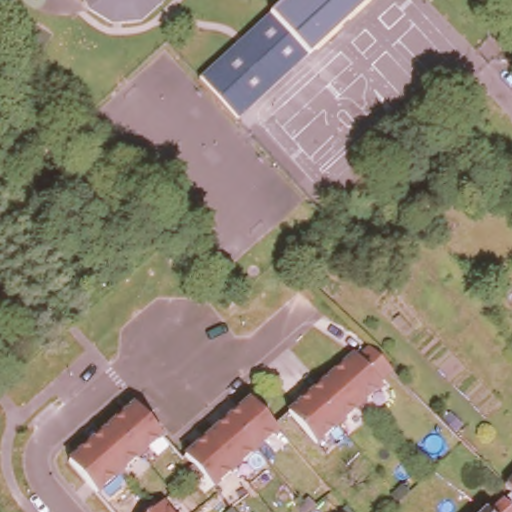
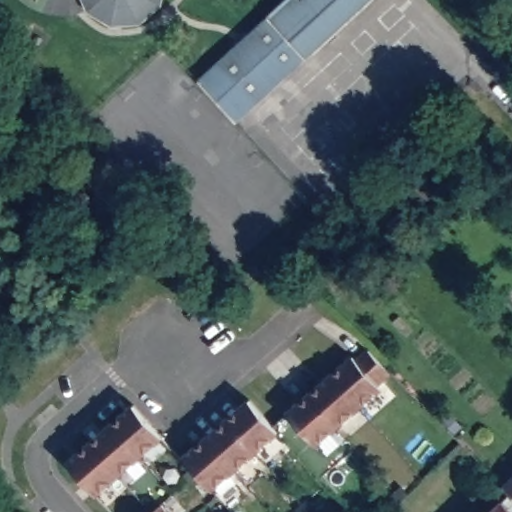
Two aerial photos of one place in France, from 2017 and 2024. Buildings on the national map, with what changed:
unchanged [(144,20),(115,23),(94,9),(90,0),(165,0),(164,1),(144,20)]
unchanged [(367,0),(312,51),(275,11),(287,0),(367,0)]
unchanged [(241,116),(204,74),(275,11),(312,51),(241,116)]
unchanged [(512,53),(512,61),(508,58),(512,53)]
unchanged [(413,156),(439,188),(412,215),(383,183),(413,156)]
unchanged [(356,352),(360,357),(371,346),(394,368),(380,380),(384,384),(318,441),(290,409),(356,352)]
unchanged [(251,395),(279,427),(213,484),(186,452),(251,395)]
unchanged [(141,400),(168,432),(103,489),(74,457),(141,400)]
unchanged [(504,479),(503,478),(512,467),(512,487),(509,484),(504,479)]
unchanged [(481,504),(485,507),(499,493),(509,484),(512,487),(512,509),(509,512),(471,512),(481,504)]
unchanged [(163,499),(174,512),(148,512),(163,499)]

